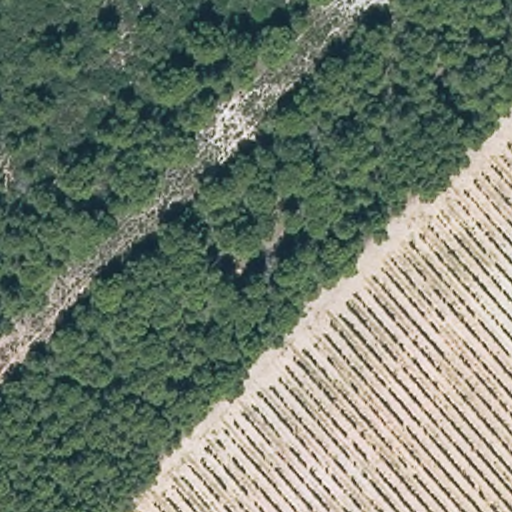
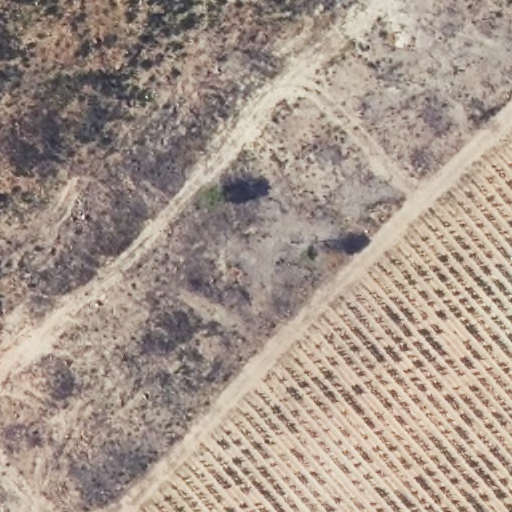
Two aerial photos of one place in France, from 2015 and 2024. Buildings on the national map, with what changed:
[]

